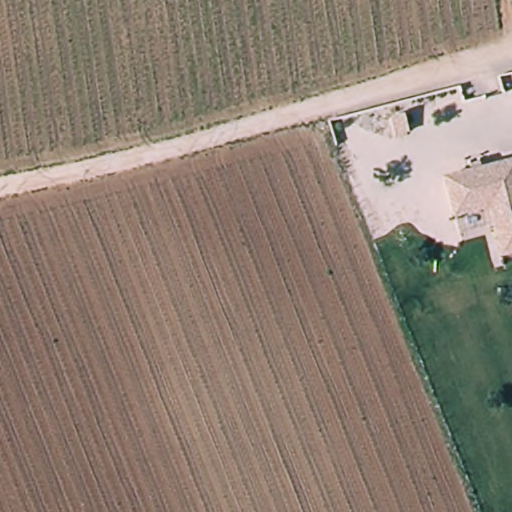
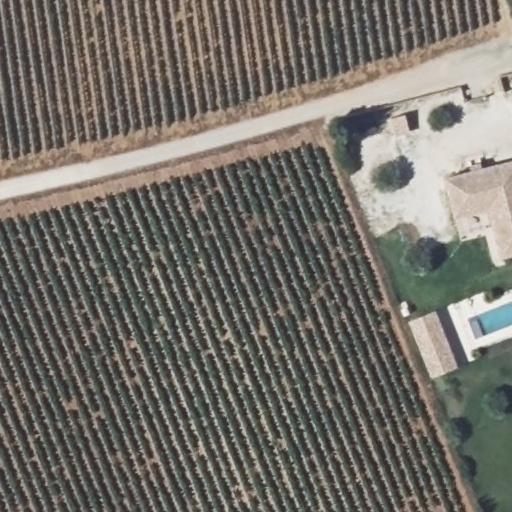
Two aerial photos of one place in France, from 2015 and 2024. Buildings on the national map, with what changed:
unchanged [(406,114),(410,132),(394,137),(390,119),(406,114)]
unchanged [(512,159),(512,256),(501,260),(488,210),(454,219),(444,177),(512,159)]
new [(436,310),(459,366),(431,377),(409,322),(436,310)]

